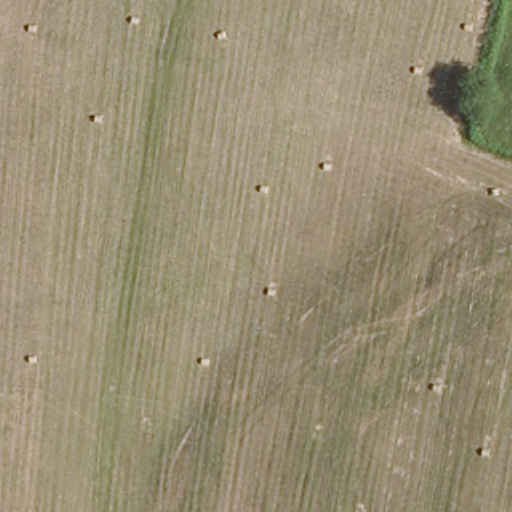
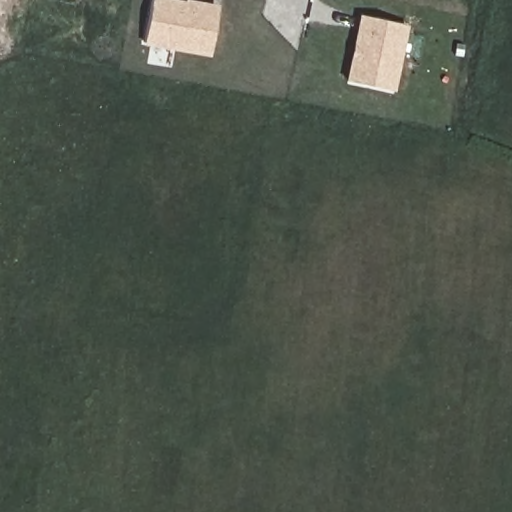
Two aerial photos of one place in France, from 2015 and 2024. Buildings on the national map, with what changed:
new [(215,6),(208,52),(202,51),(201,56),(151,47),(152,42),(145,41),(152,0),(181,0),(215,6)]
new [(354,55),(358,55),(359,50),(357,50),(364,16),(405,25),(391,90),(349,81),(354,55)]

